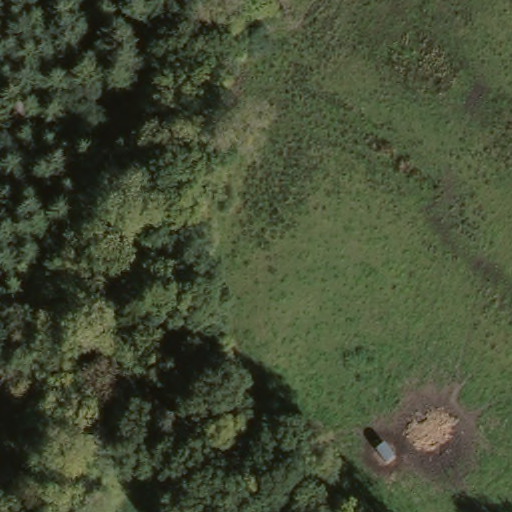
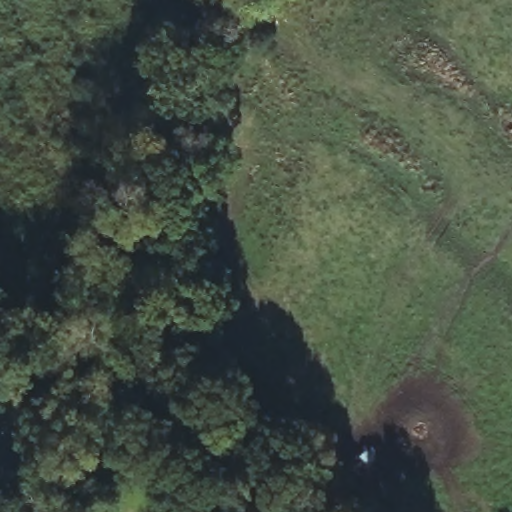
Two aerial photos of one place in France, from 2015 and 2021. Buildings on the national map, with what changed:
[]

